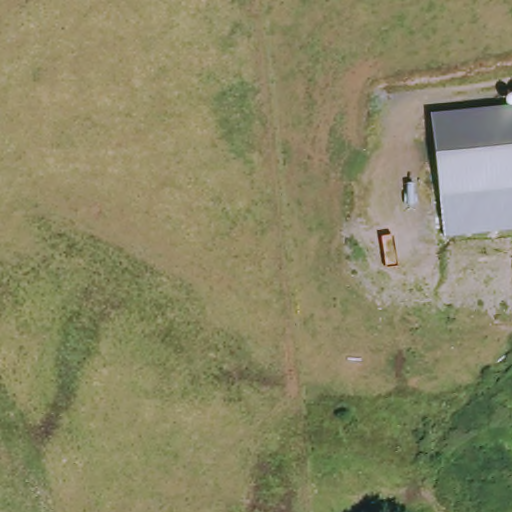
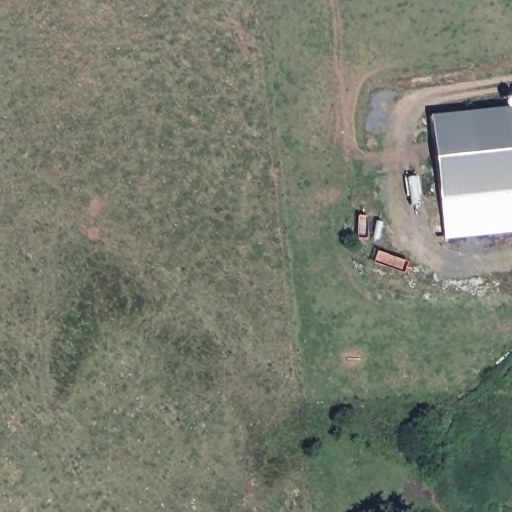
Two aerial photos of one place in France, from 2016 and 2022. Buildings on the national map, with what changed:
unchanged [(428,115),(512,105),(512,239),(445,244),(428,115)]

